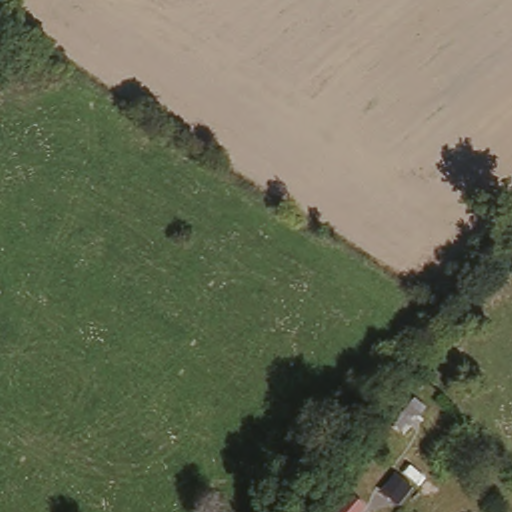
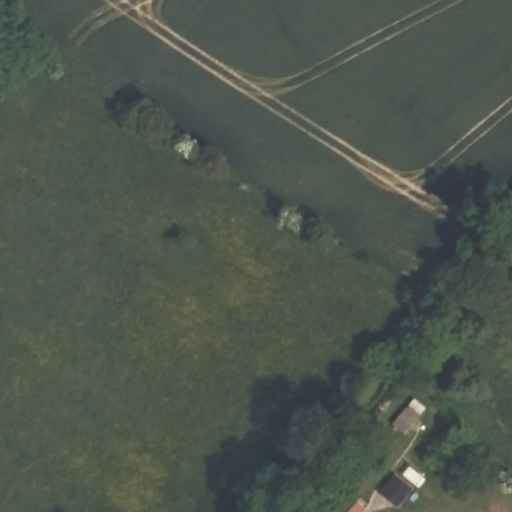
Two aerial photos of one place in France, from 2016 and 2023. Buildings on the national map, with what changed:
unchanged [(420,416),(403,433),(394,425),(410,407),(420,416)]
unchanged [(412,489),(400,505),(383,491),(396,476),(412,489)]
unchanged [(360,510),(358,512),(335,512),(347,499),(360,510)]

